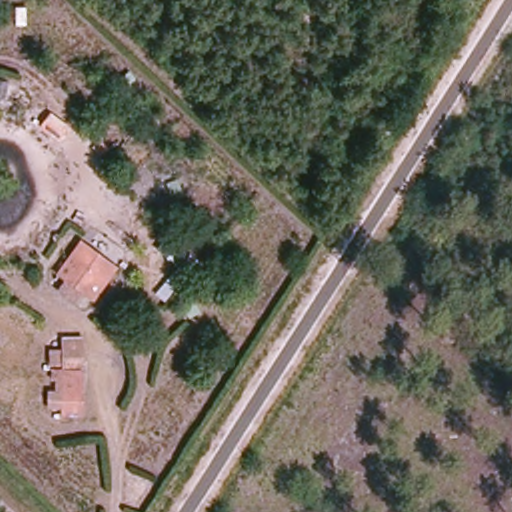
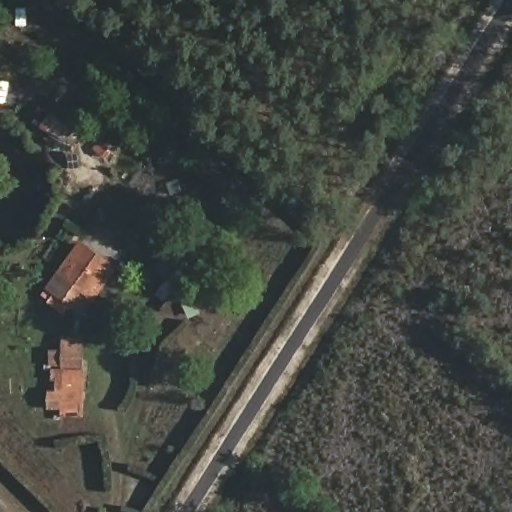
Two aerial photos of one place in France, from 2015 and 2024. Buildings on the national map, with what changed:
unchanged [(104,273),(110,280),(96,302),(82,293),(76,302),(57,288),(64,277),(56,272),(81,239),(111,261),(104,273)]
unchanged [(82,416),(60,415),(60,409),(50,409),(49,392),(55,391),(55,381),(52,381),(52,370),(61,368),(61,366),(52,366),(52,349),(59,348),(59,334),(81,334),(82,416)]

